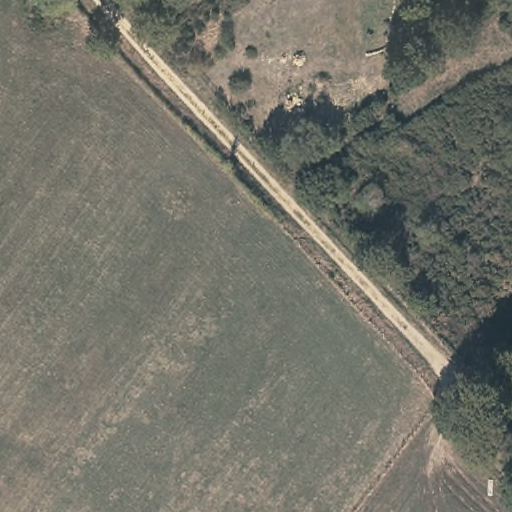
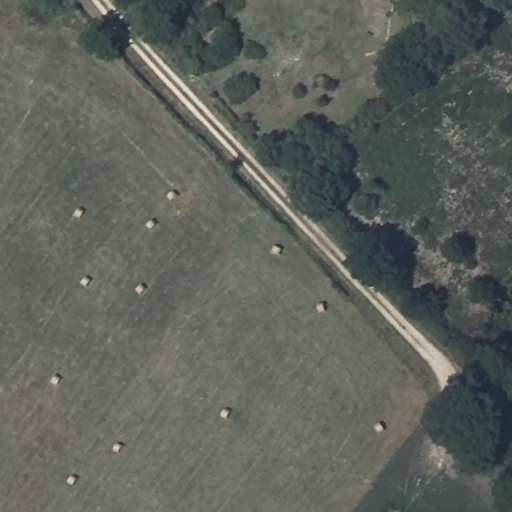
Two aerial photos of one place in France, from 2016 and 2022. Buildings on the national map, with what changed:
[]

